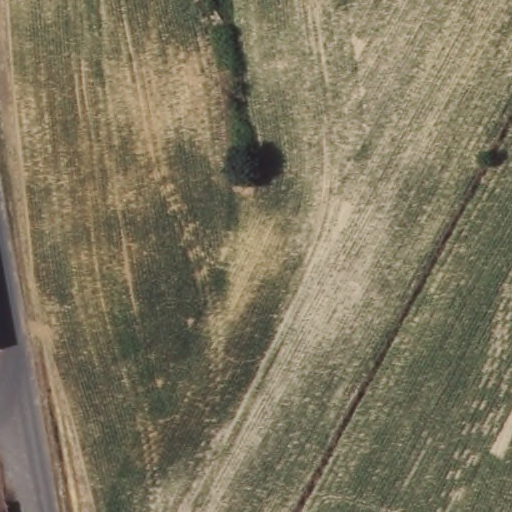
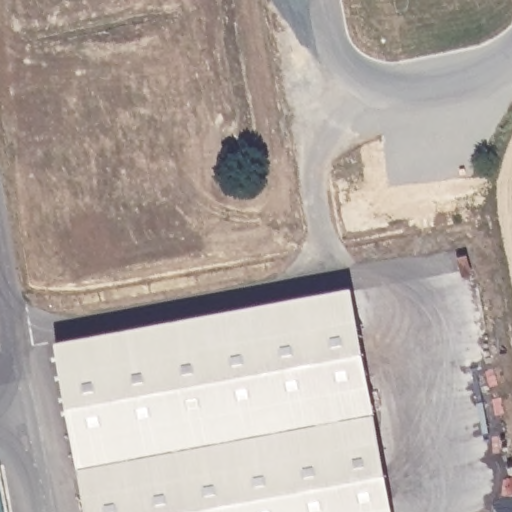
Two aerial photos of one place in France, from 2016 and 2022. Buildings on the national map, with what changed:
new [(77,465),(54,339),(351,286),(393,512),(85,512),(77,465)]

